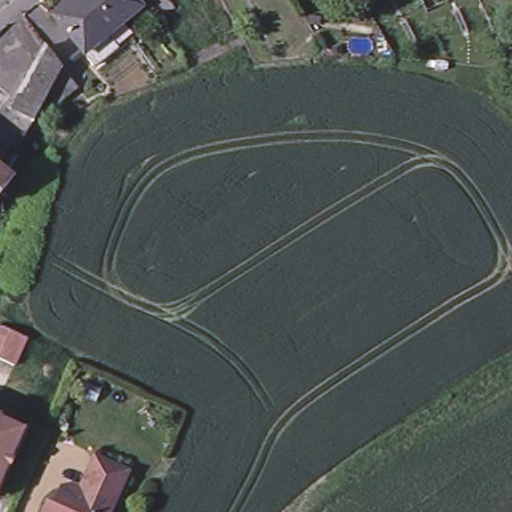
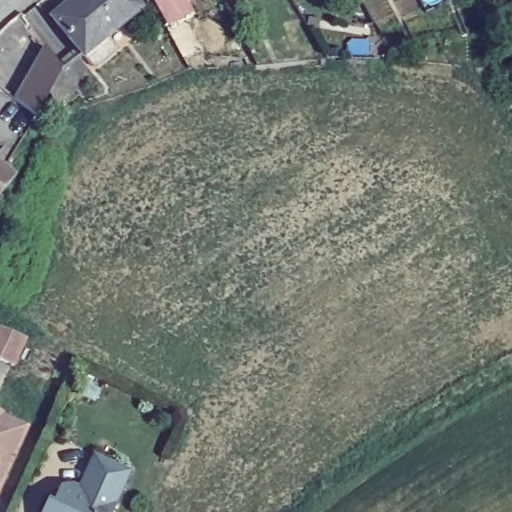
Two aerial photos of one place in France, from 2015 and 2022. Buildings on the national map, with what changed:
unchanged [(112,39),(90,60),(45,9),(55,0),(132,0),(102,26),(112,39)]
unchanged [(53,72),(30,115),(24,112),(5,102),(27,64),(31,56),(40,41),(59,62),(57,65),(53,72)]
unchanged [(5,180),(0,185),(0,175),(5,180)]
unchanged [(25,335),(12,362),(0,357),(0,324),(25,335)]
unchanged [(28,432),(0,489),(0,418),(28,432)]
unchanged [(49,498),(55,501),(63,486),(77,492),(97,455),(130,471),(110,512),(42,512),(49,498)]

